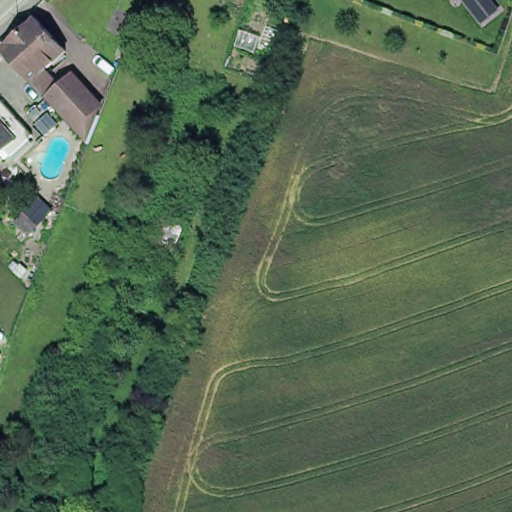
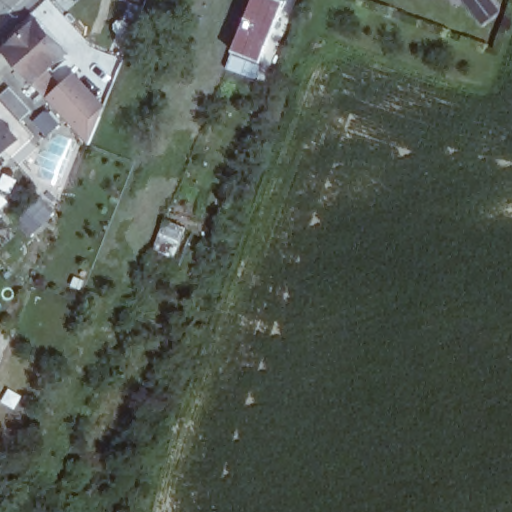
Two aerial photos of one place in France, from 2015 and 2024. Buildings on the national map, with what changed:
new [(259,66),(228,54),(246,0),(269,0),(281,5),(259,66)]
unchanged [(481,25),(464,0),(493,0),(500,12),(481,25)]
unchanged [(33,77),(3,45),(37,14),(68,46),(44,67),(57,82),(66,74),(101,111),(90,139),(47,92),(33,77)]
unchanged [(5,162),(0,158),(0,112),(28,139),(5,162)]
unchanged [(166,220),(186,228),(175,257),(155,249),(166,220)]

